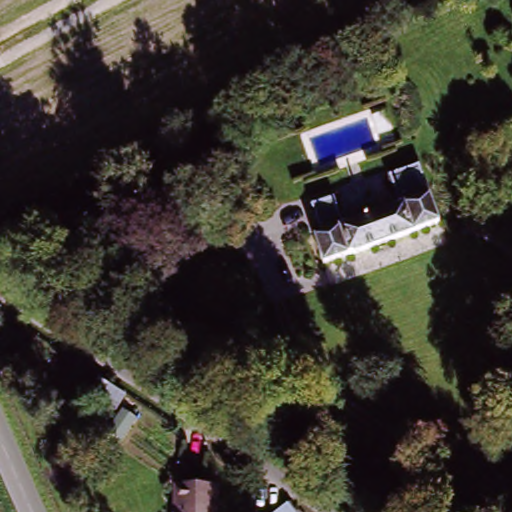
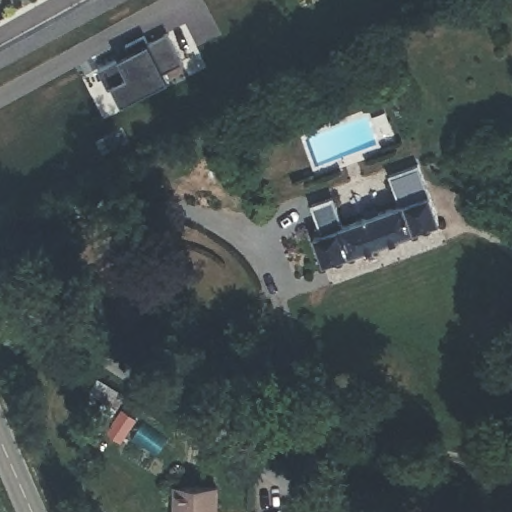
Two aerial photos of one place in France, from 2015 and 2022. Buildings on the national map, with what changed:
new [(184,61),(166,71),(170,79),(122,103),(112,83),(108,86),(98,68),(119,58),(150,42),(169,32),(184,61)]
unchanged [(421,164),(428,186),(401,194),(393,172),(421,164)]
unchanged [(313,199),(342,191),(352,221),(396,208),(431,198),(440,195),(450,225),(328,261),(318,229),(323,227),(313,199)]
unchanged [(175,512),(177,485),(219,489),(217,512),(175,512)]
new [(297,512),(276,512),(289,501),(297,512)]

